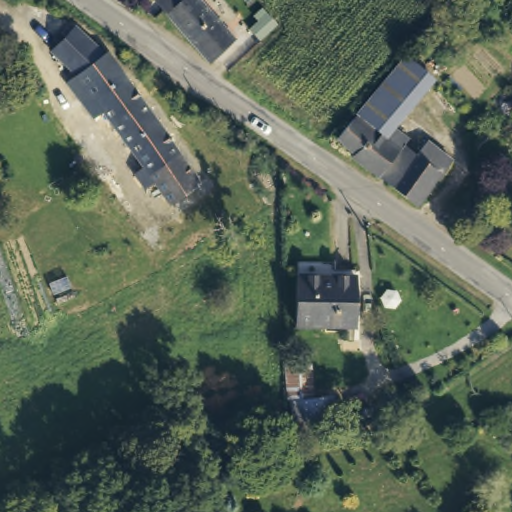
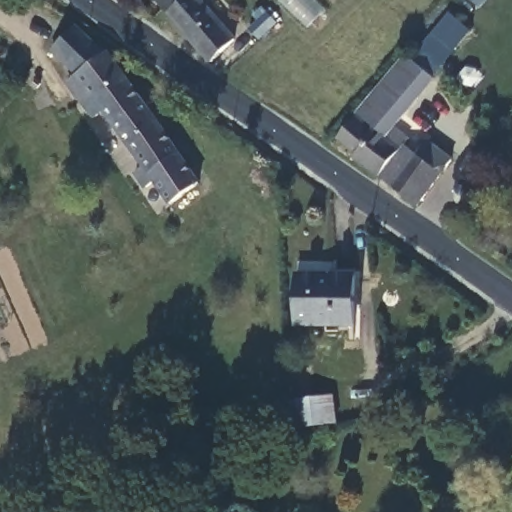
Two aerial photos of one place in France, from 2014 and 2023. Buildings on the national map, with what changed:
unchanged [(156,0),(202,0),(237,39),(211,61),(156,0)]
new [(429,79),(410,63),(447,12),(470,30),(429,79)]
unchanged [(160,194),(152,183),(142,169),(140,170),(128,154),(137,146),(108,105),(101,111),(91,98),(85,102),(67,77),(81,67),(57,45),(82,22),(107,47),(110,46),(204,180),(176,200),(164,209),(155,197),(160,194)]
unchanged [(429,79),(420,90),(388,127),(405,140),(401,145),(413,155),(423,142),(448,161),(415,205),(414,206),(380,180),(352,159),(349,156),(351,154),(332,139),(352,115),(388,71),(401,56),(429,79)]
unchanged [(69,163),(73,175),(49,184),(44,171),(69,163)]
unchanged [(356,275),(355,325),(298,325),(299,275),(356,275)]
unchanged [(333,412),(293,416),(290,389),(287,389),(286,355),(310,354),(312,387),(331,385),(333,412)]

